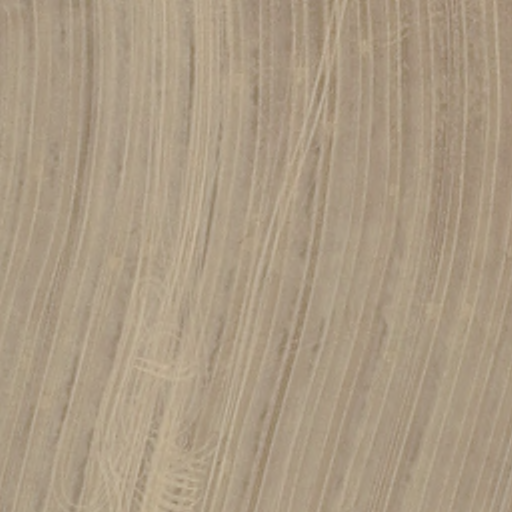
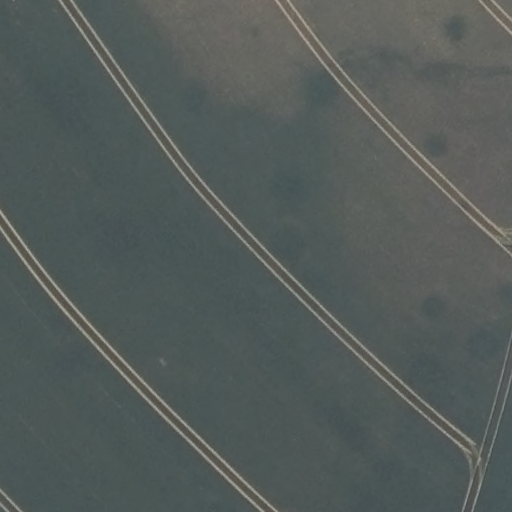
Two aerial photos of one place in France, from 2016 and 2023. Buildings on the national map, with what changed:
[]

